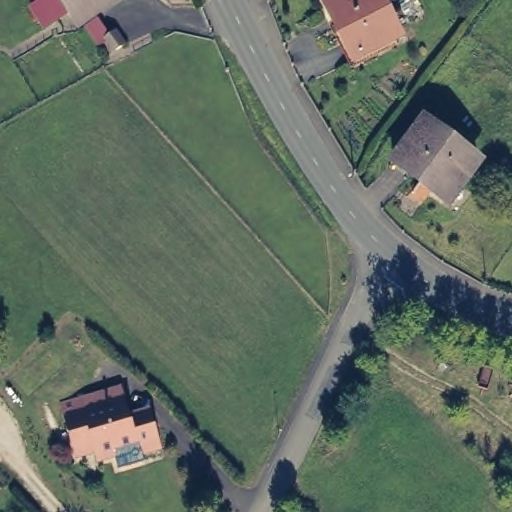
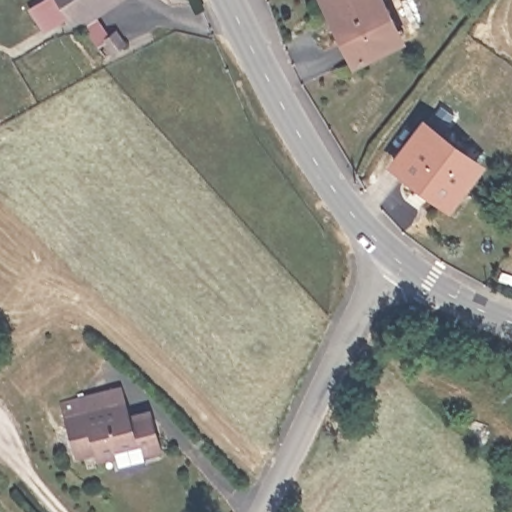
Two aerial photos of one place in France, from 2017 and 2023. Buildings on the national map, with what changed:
unchanged [(89,15),(92,22),(80,30),(70,17),(48,33),(37,14),(57,0),(110,0),(89,15)]
unchanged [(392,39),(349,61),(318,0),(373,0),(392,39)]
unchanged [(127,49),(115,57),(106,46),(100,49),(89,33),(100,25),(112,41),(119,37),(127,49)]
unchanged [(419,119),(471,159),(441,198),(389,158),(419,119)]
unchanged [(157,450),(121,459),(119,455),(97,460),(95,451),(76,455),(62,402),(119,388),(129,422),(149,417),(157,450)]

